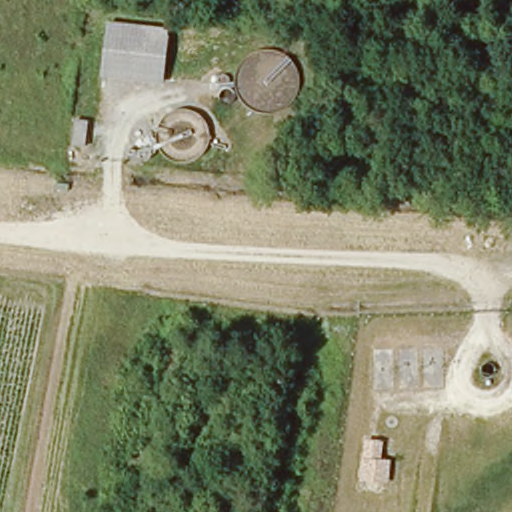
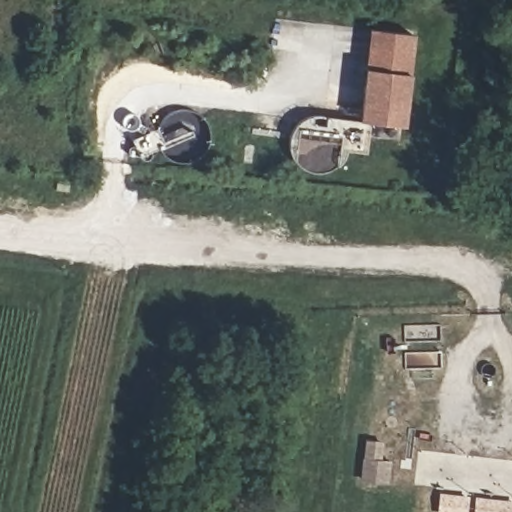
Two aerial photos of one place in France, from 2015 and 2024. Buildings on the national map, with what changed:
demolished [(104,77),(108,23),(170,30),(164,85),(104,77)]
new [(411,74),(405,126),(358,120),(365,70),(370,30),(415,35),(411,74)]

